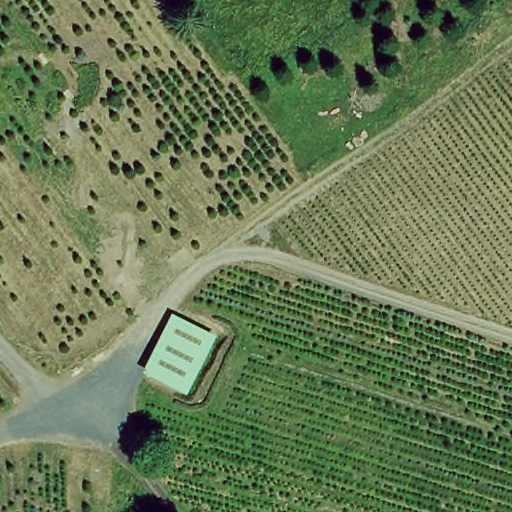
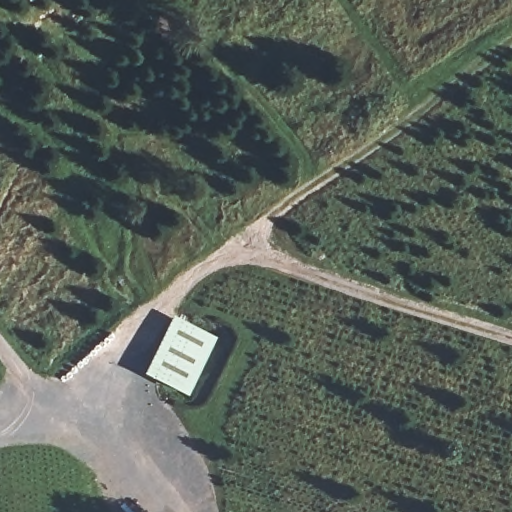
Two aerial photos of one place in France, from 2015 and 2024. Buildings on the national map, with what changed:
unchanged [(216,339),(188,400),(141,378),(172,318),(216,339)]

